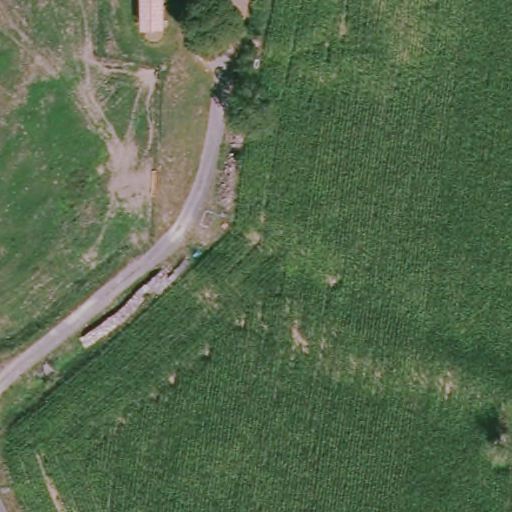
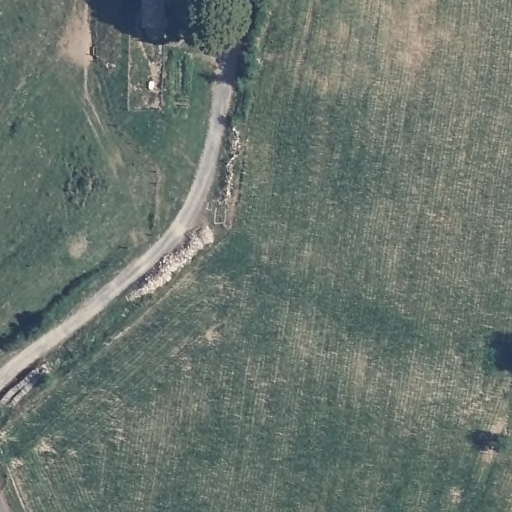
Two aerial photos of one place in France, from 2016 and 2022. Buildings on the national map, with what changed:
unchanged [(158,49),(148,48),(144,42),(145,0),(163,0),(161,45),(158,49)]

